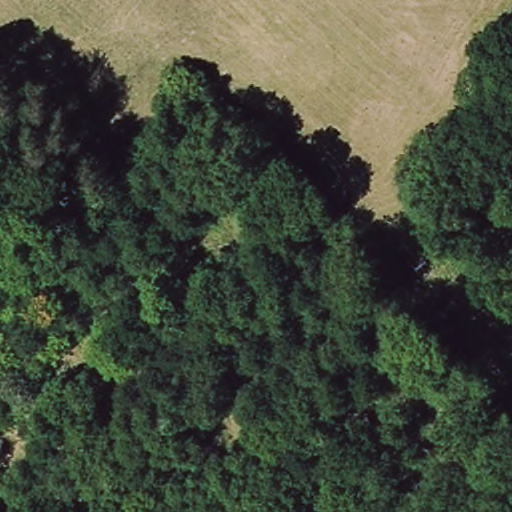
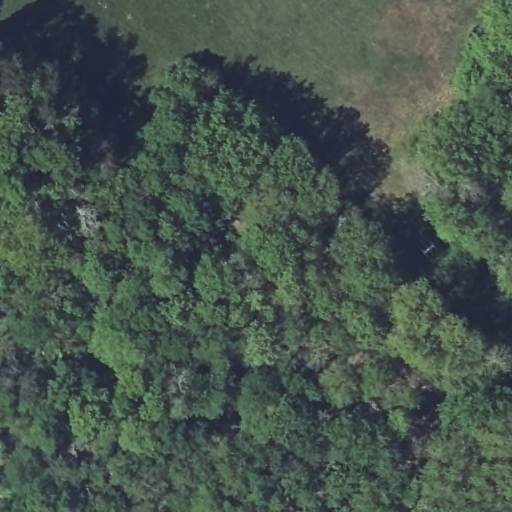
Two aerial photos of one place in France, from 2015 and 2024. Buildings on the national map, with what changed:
[]

